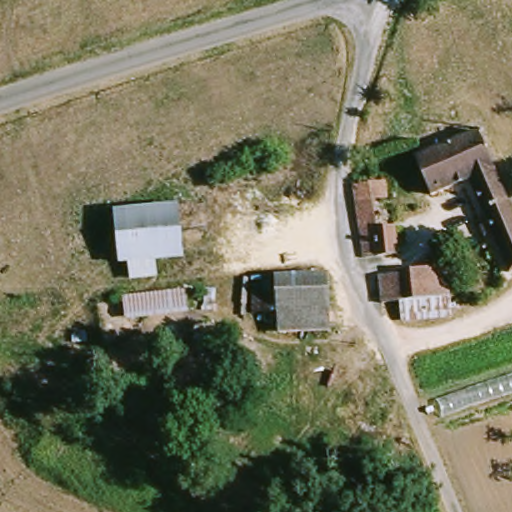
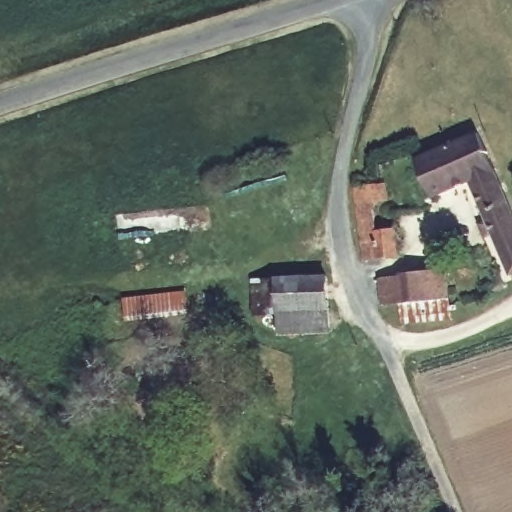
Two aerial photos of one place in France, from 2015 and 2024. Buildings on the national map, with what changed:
unchanged [(413,158),(476,132),(512,214),(512,267),(507,269),(468,177),(429,195),(413,158)]
unchanged [(373,225),(389,224),(392,254),(361,256),(356,184),(384,182),(384,201),(372,202),(373,225)]
demolished [(175,204),(181,256),(115,262),(112,210),(175,204)]
unchanged [(373,275),(399,272),(400,267),(428,262),(427,250),(445,249),(450,310),(451,315),(400,320),(393,305),(375,306),(373,275)]
unchanged [(326,278),(330,335),(281,337),(280,315),(252,316),(250,284),(326,278)]
unchanged [(183,291),(183,313),(122,319),(120,295),(183,291)]

